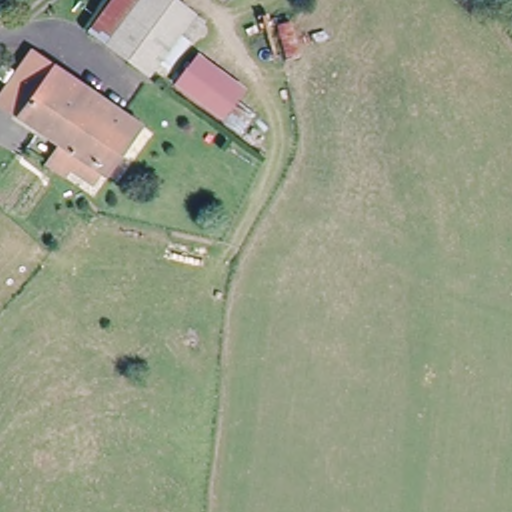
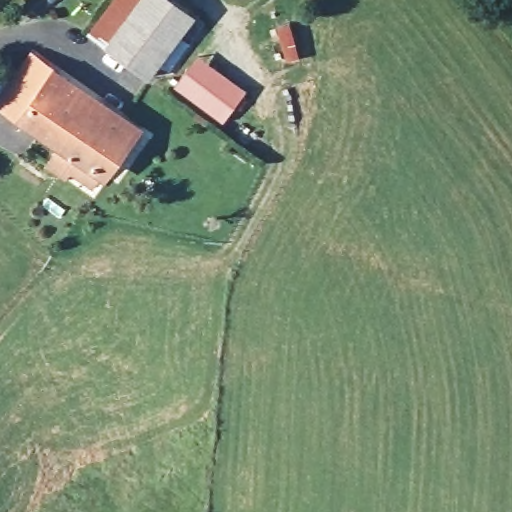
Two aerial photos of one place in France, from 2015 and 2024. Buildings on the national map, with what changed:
unchanged [(99,36),(88,26),(110,0),(151,0),(110,46),(99,36)]
unchanged [(173,0),(194,19),(145,76),(110,46),(151,0),(173,0)]
unchanged [(35,53),(138,125),(105,172),(69,146),(1,99),(35,53)]
unchanged [(248,84),(225,118),(179,83),(203,53),(248,84)]
unchanged [(56,161),(69,146),(105,172),(110,175),(97,191),(56,161)]

